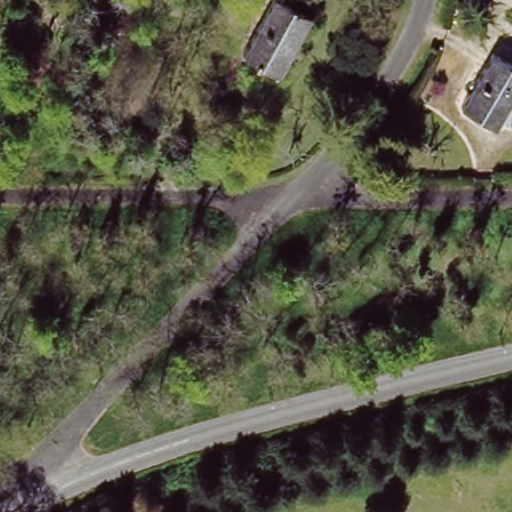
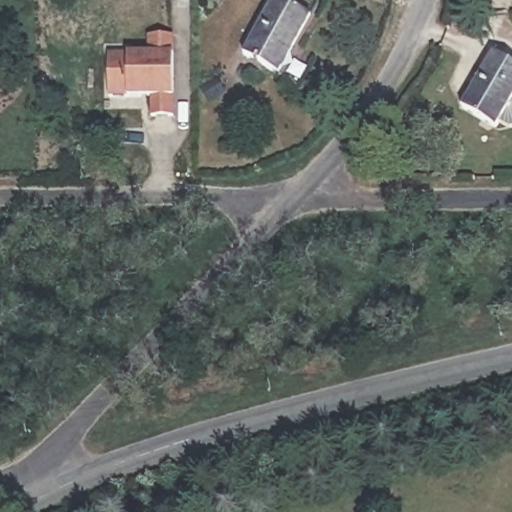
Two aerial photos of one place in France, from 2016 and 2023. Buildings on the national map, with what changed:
unchanged [(314,26),(268,75),(240,48),(286,0),(288,0),(314,26)]
new [(172,53),(172,96),(173,116),(148,116),(146,96),(125,95),(107,95),(107,53),(127,53),(145,53),(146,35),(172,35),(172,53)]
unchanged [(512,65),(512,99),(496,126),(463,105),(492,55),(512,65)]

